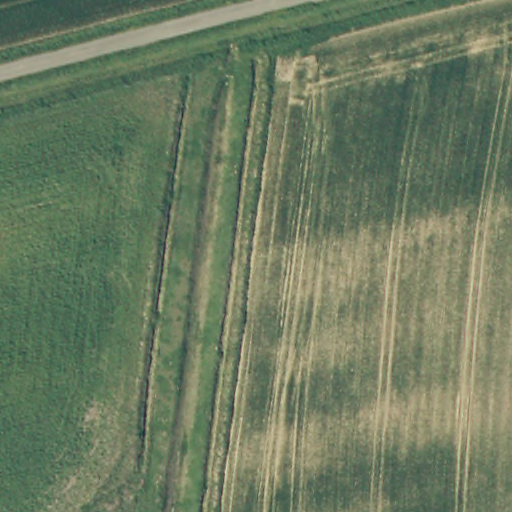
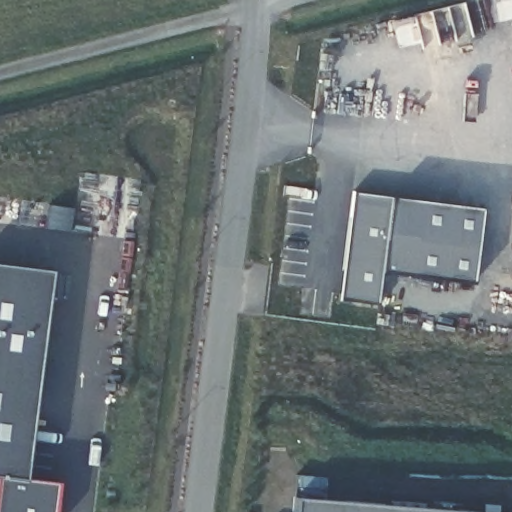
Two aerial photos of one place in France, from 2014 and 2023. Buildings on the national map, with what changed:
new [(119,178),(120,182),(128,184),(128,192),(134,193),(128,239),(126,245),(78,238),(86,173),(119,178)]
new [(473,283),(384,271),(377,303),(340,299),(355,193),(392,198),(481,209),(473,283)]
new [(55,483),(52,512),(0,512),(0,264),(50,271),(24,479),(55,483)]
new [(293,498),(474,512),(292,512),(293,498)]

